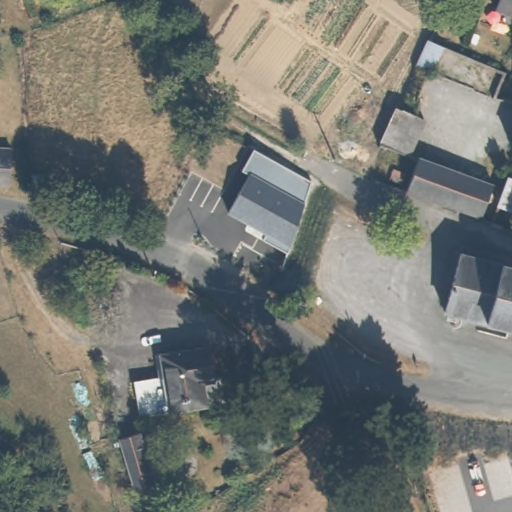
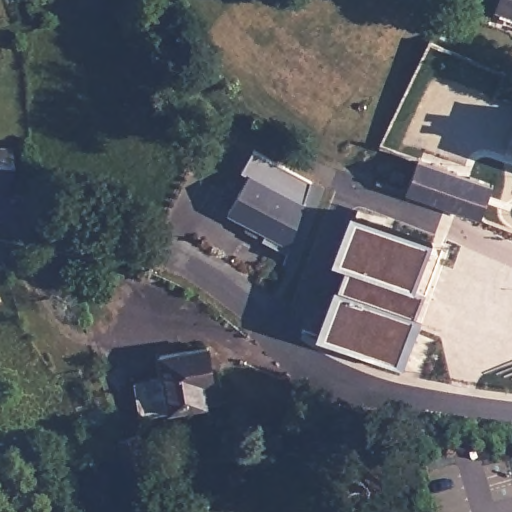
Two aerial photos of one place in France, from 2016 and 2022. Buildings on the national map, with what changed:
unchanged [(512,0),(512,19),(496,13),(500,0),(512,0)]
demolished [(431,79),(415,69),(425,43),(443,51),(431,79)]
unchanged [(312,182),(288,253),(246,230),(248,224),(229,213),(248,176),(241,171),(255,150),(312,182)]
unchanged [(7,156),(7,193),(0,193),(0,156),(7,156)]
unchanged [(492,188),(478,226),(400,198),(416,162),(492,188)]
demolished [(512,213),(497,208),(506,180),(512,182),(512,213)]
new [(434,242),(417,289),(424,292),(416,317),(421,319),(403,369),(317,338),(335,288),(338,289),(347,266),(333,262),(352,212),(434,242)]
demolished [(458,261),(512,274),(512,338),(443,320),(458,261)]
unchanged [(206,353),(211,390),(202,390),(205,412),(167,418),(166,416),(137,421),(131,387),(161,380),(157,360),(206,353)]
unchanged [(121,443),(141,437),(156,487),(136,494),(121,443)]
unchanged [(387,442),(397,465),(382,470),(375,447),(387,442)]

